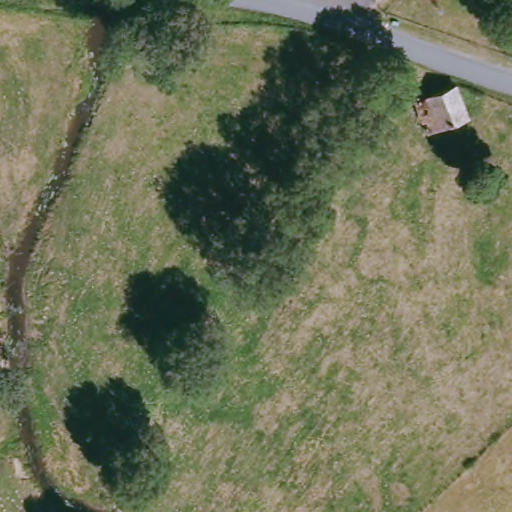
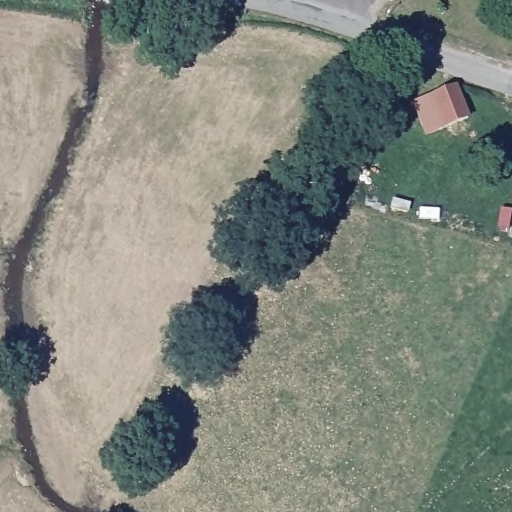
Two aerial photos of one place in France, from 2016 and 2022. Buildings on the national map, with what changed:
unchanged [(454,90),(465,122),(441,131),(430,97),(454,90)]

